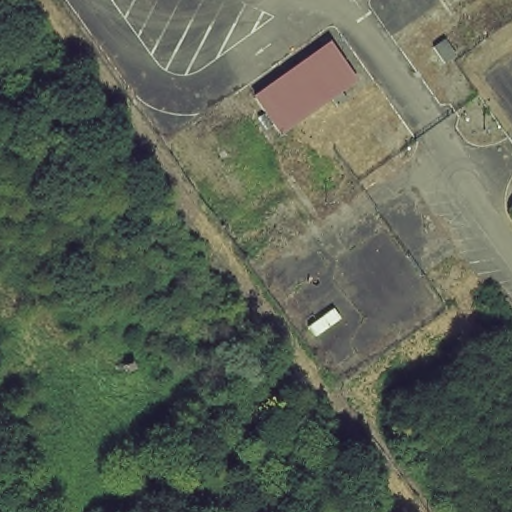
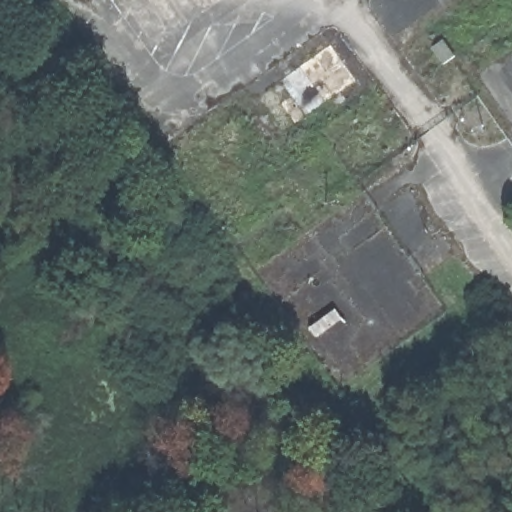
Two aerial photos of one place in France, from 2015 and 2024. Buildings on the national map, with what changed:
new [(444,40),(455,56),(444,63),(433,48),(444,40)]
demolished [(356,83),(276,133),(255,102),(329,46),(356,83)]

